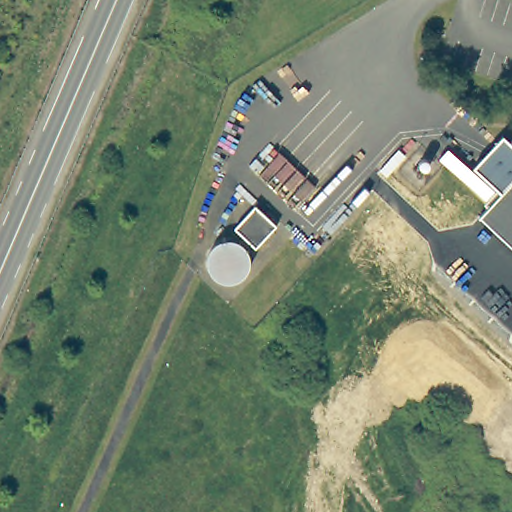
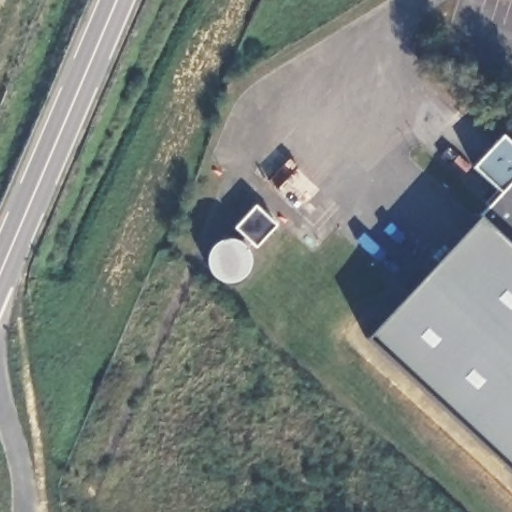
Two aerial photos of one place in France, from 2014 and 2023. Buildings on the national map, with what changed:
new [(487,223),(480,217),(501,192),(473,166),(503,135),(509,142),(512,139),(512,320),(449,263),(487,223)]
demolished [(512,184),(512,243),(482,216),(512,184)]
unchanged [(233,228),(256,208),(275,229),(253,249),(233,228)]
unchanged [(248,264),(247,268),(245,272),(243,275),(240,278),(237,281),(233,282),(229,283),(225,284),(221,283),(217,282),(213,281),(210,278),(207,275),(205,272),(203,268),(202,264),(202,260),(202,256),(203,252),(205,248),(207,245),(210,242),(213,240),(217,238),(221,237),(225,237),(229,237),(233,238),(237,240),(240,242),(243,245),(245,248),(247,252),(248,256),(249,260),(248,264)]
new [(442,258),(512,320),(512,471),(367,338),(442,258)]

